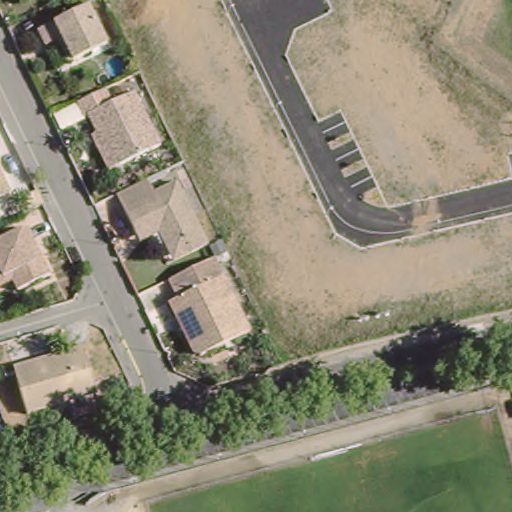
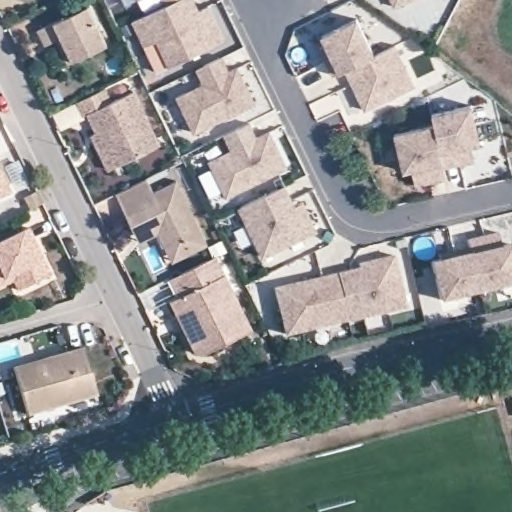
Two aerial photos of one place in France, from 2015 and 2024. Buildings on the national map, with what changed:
unchanged [(83,0),(88,0),(107,38),(69,56),(57,32),(46,38),(38,21),(83,0)]
new [(170,2),(150,12),(146,4),(133,10),(128,0),(175,0),(170,2)]
new [(200,16),(209,12),(225,45),(166,74),(142,22),(188,0),(192,0),(200,16)]
new [(388,0),(413,0),(393,10),(388,0)]
new [(376,58),(345,74),(344,70),(338,73),(320,35),(357,17),(376,58)]
new [(345,74),(397,47),(416,85),(364,113),(345,74)]
new [(176,98),(202,85),(196,72),(224,59),(230,72),(237,69),(254,105),(194,135),(176,98)]
unchanged [(91,124),(97,121),(88,104),(85,106),(78,91),(105,78),(111,92),(134,81),(160,135),(120,154),(108,160),(91,124)]
demolished [(296,119),(271,124),(245,129),(241,107),(291,96),(296,119)]
new [(472,104),(480,143),(472,144),(475,160),(448,165),(438,123),(435,124),(432,114),(472,104)]
demolished [(269,149),(277,146),(288,144),(285,133),(298,130),(356,118),(362,143),(342,148),(346,166),(348,175),(326,180),(278,190),(269,149)]
new [(438,123),(450,176),(420,184),(416,168),(407,170),(399,132),(438,123)]
new [(209,162),(231,153),(224,136),(250,124),(256,137),(269,131),(287,169),(225,198),(209,162)]
unchanged [(0,188),(0,166),(9,183),(0,188)]
unchanged [(162,240),(153,223),(135,232),(112,184),(142,169),(149,183),(172,172),(202,235),(186,243),(167,252),(162,240)]
new [(238,212),(288,187),(296,205),(303,203),(317,232),(262,259),(238,212)]
unchanged [(45,270),(13,286),(8,275),(0,279),(0,234),(23,223),(45,270)]
unchanged [(501,231),(504,245),(512,243),(512,283),(482,290),(470,238),(501,231)]
unchanged [(191,343),(166,292),(176,287),(180,286),(171,267),(210,249),(246,322),(203,343),(197,346),(191,343)]
new [(473,251),(482,290),(439,300),(429,261),(473,251)]
new [(271,289),(357,269),(357,266),(393,258),(405,309),(282,338),(271,289)]
unchanged [(73,411),(68,394),(27,406),(13,360),(83,339),(97,385),(102,402),(73,411)]

